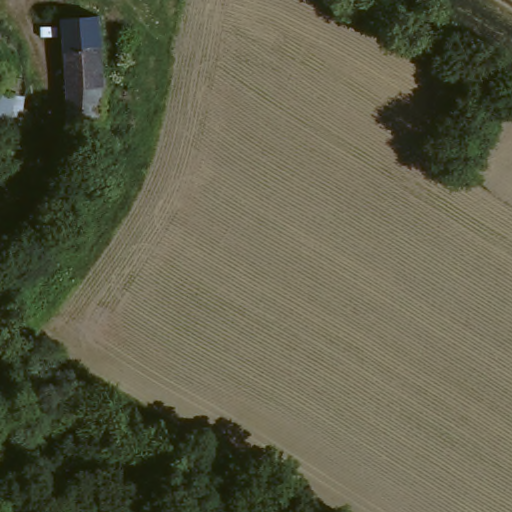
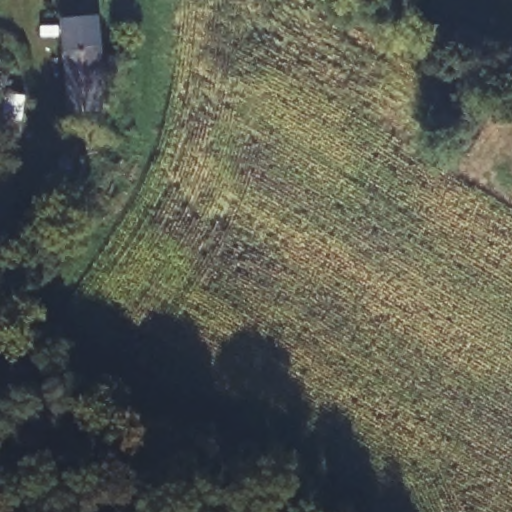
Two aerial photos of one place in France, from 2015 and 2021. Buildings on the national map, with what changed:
unchanged [(96,12),(99,81),(88,81),(66,81),(61,13),(96,11),(96,12)]
unchanged [(66,81),(88,81),(99,81),(100,114),(69,116),(66,81)]
unchanged [(14,115),(13,118),(0,117),(0,99),(15,100),(14,115)]

